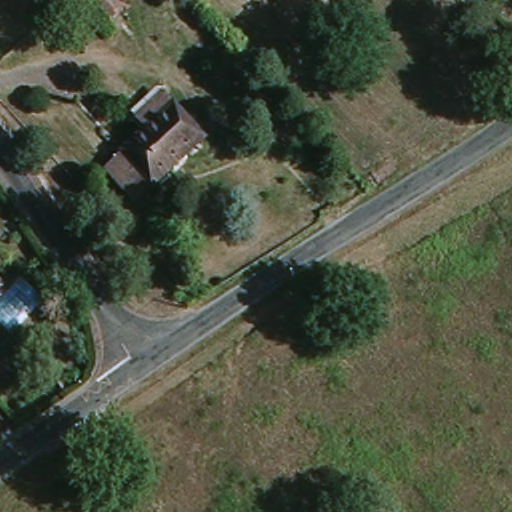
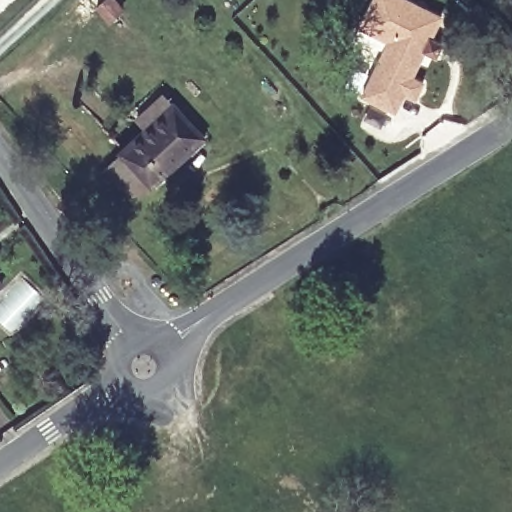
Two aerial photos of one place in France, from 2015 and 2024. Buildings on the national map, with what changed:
new [(77,0),(117,0),(124,8),(111,20),(98,7),(79,28),(63,14),(77,0)]
new [(446,13),(436,35),(443,39),(447,41),(441,53),(438,50),(430,47),(417,74),(428,79),(420,95),(409,90),(400,109),(368,93),(394,38),(365,24),(377,0),(419,0),(446,13)]
unchanged [(220,136),(168,189),(163,185),(147,200),(114,169),(155,129),(146,119),(173,89),(220,136)]
unchanged [(0,301),(0,257),(21,286),(0,301)]

